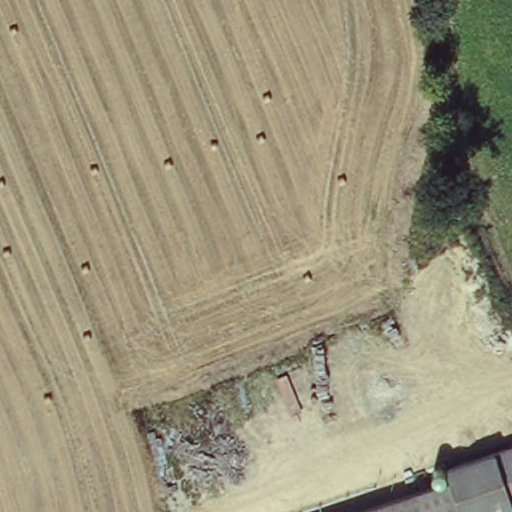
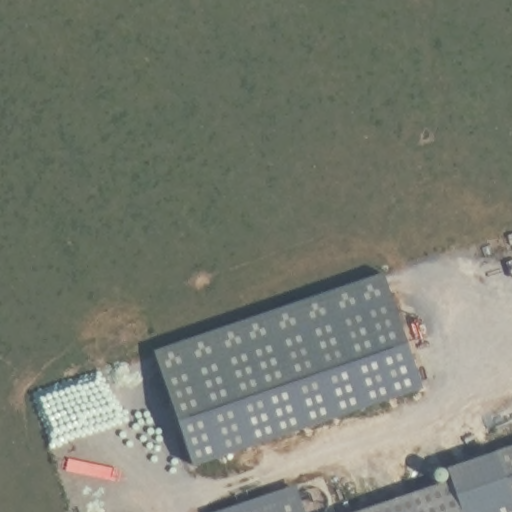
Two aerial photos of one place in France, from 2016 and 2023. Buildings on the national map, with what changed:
new [(382,270),(420,385),(191,460),(153,346),(382,270)]
unchanged [(512,447),(512,512),(467,512),(452,467),(512,447)]
unchanged [(467,512),(347,512),(455,478),(467,512)]
unchanged [(209,512),(293,485),(304,512),(209,512)]

